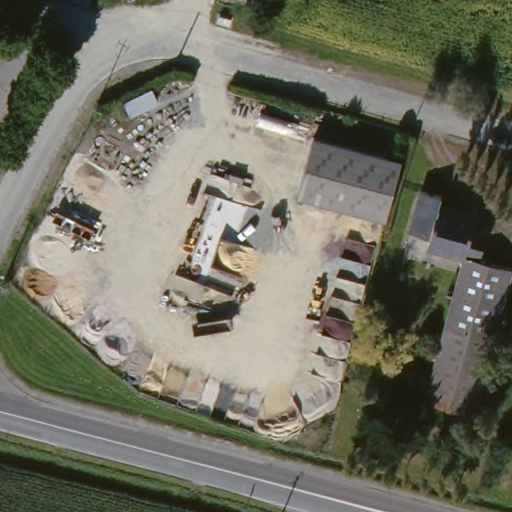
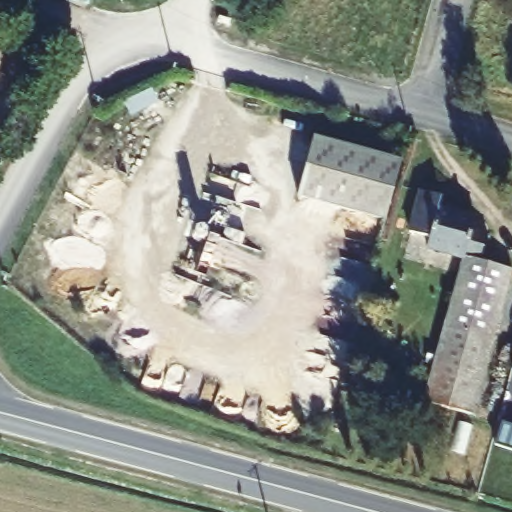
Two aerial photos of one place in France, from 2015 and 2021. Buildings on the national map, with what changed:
unchanged [(165,101),(136,117),(130,98),(160,86),(165,101)]
unchanged [(320,137),(408,161),(392,220),(303,196),(320,137)]
unchanged [(448,197),(445,210),(479,220),(478,227),(491,231),(484,263),(512,269),(512,282),(474,419),(428,407),(466,257),(431,249),(433,239),(413,234),(425,192),(448,197)]

